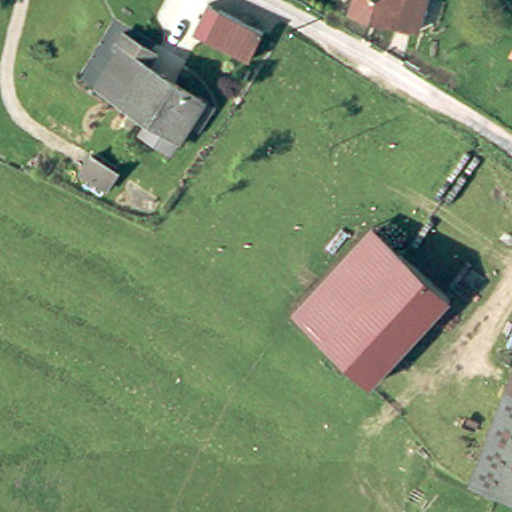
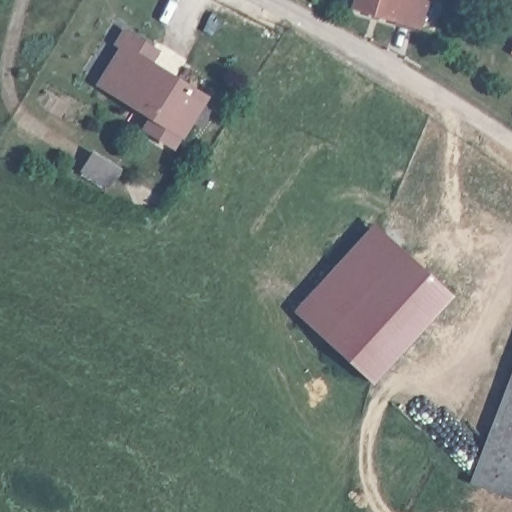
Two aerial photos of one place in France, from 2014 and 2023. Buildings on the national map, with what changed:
unchanged [(426,28),(356,8),(358,0),(432,0),(426,28)]
unchanged [(242,59),(202,30),(222,5),(262,33),(242,59)]
unchanged [(165,51),(157,66),(209,97),(190,133),(113,89),(110,87),(132,48),(124,44),(132,31),(147,40),(165,51)]
unchanged [(304,310),(380,230),(451,298),(406,347),(377,380),(304,310)]
unchanged [(512,404),(512,498),(480,486),(512,404)]

